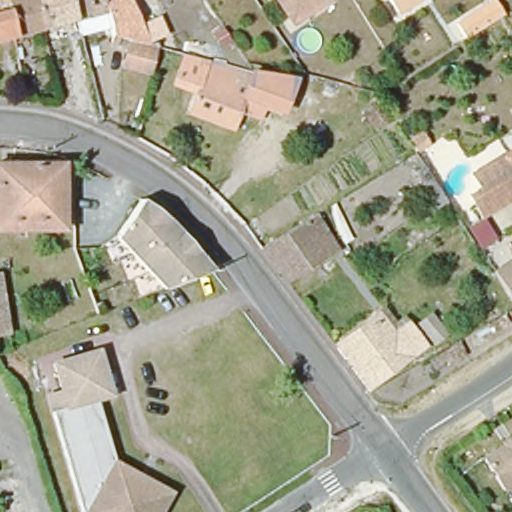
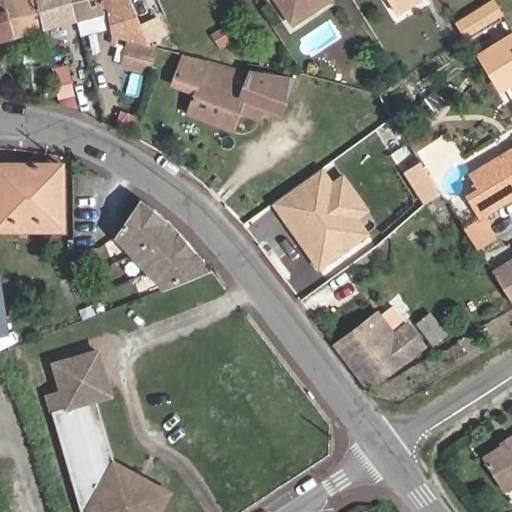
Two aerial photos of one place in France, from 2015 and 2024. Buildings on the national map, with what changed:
unchanged [(5,0),(14,36),(0,40),(0,0),(5,0)]
unchanged [(5,0),(38,0),(45,28),(14,36),(5,0)]
unchanged [(38,0),(72,0),(77,20),(45,28),(38,0)]
unchanged [(106,0),(111,27),(81,35),(77,20),(72,0),(106,0)]
unchanged [(149,41),(150,45),(113,35),(111,27),(106,0),(131,0),(142,26),(159,19),(165,33),(149,41)]
unchanged [(283,0),(332,0),(298,23),(283,0)]
unchanged [(425,0),(426,3),(402,18),(391,0),(425,0)]
unchanged [(493,0),(495,0),(503,14),(465,38),(456,23),(493,0)]
new [(512,86),(507,89),(487,54),(512,39),(512,86)]
unchanged [(157,50),(158,50),(154,65),(151,74),(123,66),(129,43),(157,50)]
unchanged [(177,81),(187,55),(212,60),(257,73),(258,73),(300,79),(285,114),(268,107),(264,118),(245,110),(238,129),(193,112),(202,88),(177,81)]
unchanged [(469,199),(481,188),(469,173),(512,149),(512,201),(482,220),(469,199)]
unchanged [(58,170),(59,225),(0,225),(0,169),(58,170)]
new [(300,243),(307,237),(291,214),(284,220),(272,203),(320,169),(332,186),(328,188),(350,221),(355,218),(366,234),(318,269),(300,243)]
new [(355,219),(355,218),(350,221),(328,188),(332,186),(331,185),(343,176),(368,210),(355,219)]
unchanged [(117,239),(145,199),(173,221),(215,270),(163,291),(117,239)]
demolished [(335,251),(291,276),(270,248),(315,220),(335,251)]
unchanged [(512,260),(512,299),(493,272),(512,260)]
unchanged [(0,273),(9,333),(0,335),(0,273)]
unchanged [(368,393),(337,352),(379,321),(394,340),(408,330),(424,351),(368,393)]
unchanged [(52,418),(45,395),(60,391),(51,362),(103,348),(116,399),(102,403),(57,416),(52,418)]
unchanged [(57,416),(102,403),(121,468),(153,486),(156,487),(157,488),(159,490),(160,492),(162,493),(163,495),(164,497),(165,499),(165,501),(166,503),(166,506),(166,508),(166,510),(166,512),(85,512),(57,416)]
unchanged [(512,485),(504,490),(483,459),(512,441),(512,485)]

